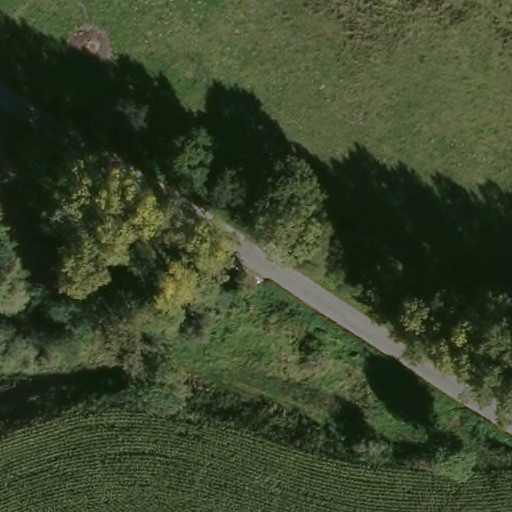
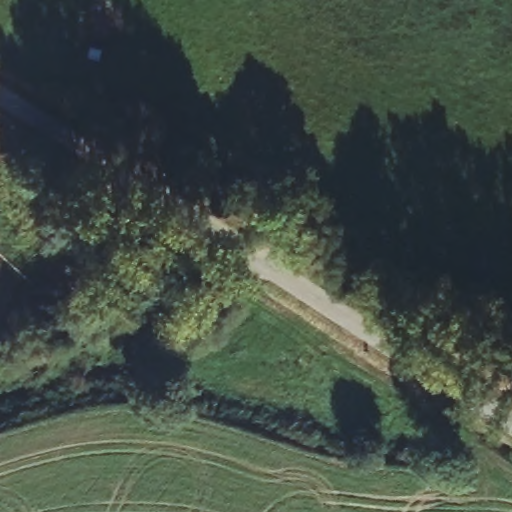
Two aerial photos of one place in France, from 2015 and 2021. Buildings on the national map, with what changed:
[]

